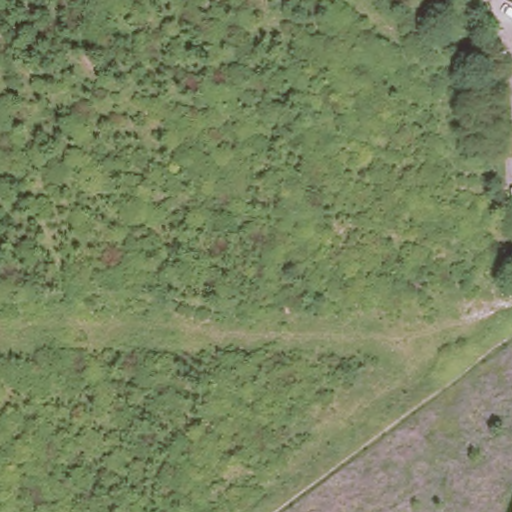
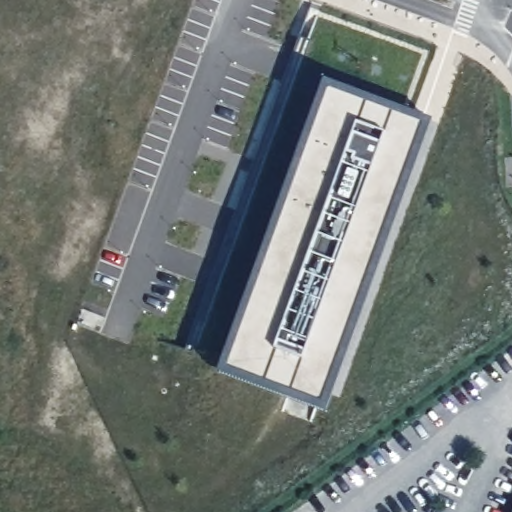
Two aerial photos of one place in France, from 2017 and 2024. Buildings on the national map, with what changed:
new [(321,406),(225,372),(187,348),(300,36),(417,81),(402,117),(422,127),(321,406)]

